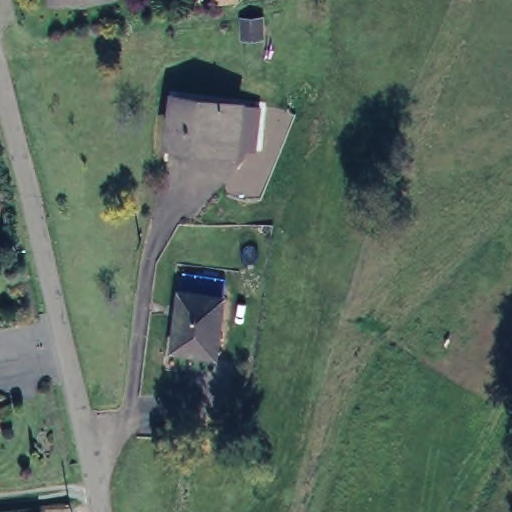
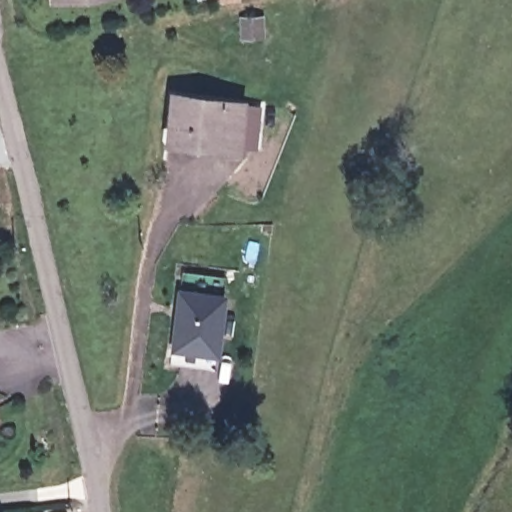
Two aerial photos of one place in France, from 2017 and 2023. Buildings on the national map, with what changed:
unchanged [(232,95),(229,141),(160,136),(163,89),(232,95)]
unchanged [(223,294),(217,352),(173,347),(179,290),(223,294)]

